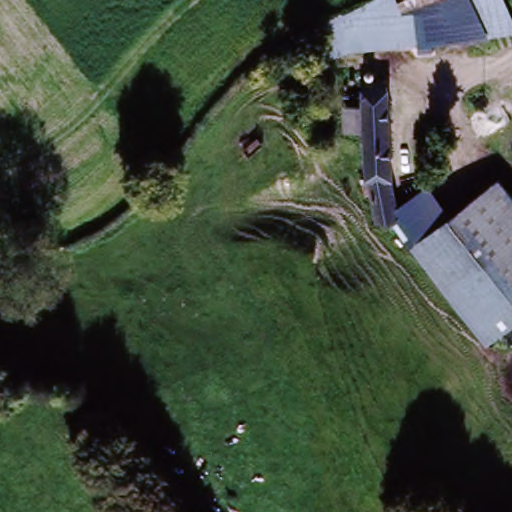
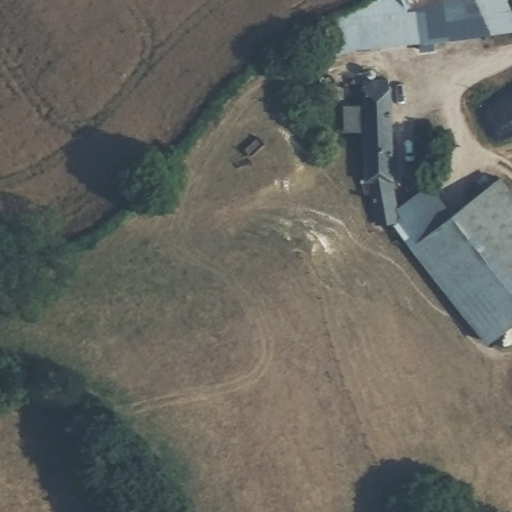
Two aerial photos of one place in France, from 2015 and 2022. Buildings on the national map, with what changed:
unchanged [(322,69),(315,29),(379,0),(507,0),(512,11),(512,30),(467,37),(452,9),(419,22),(431,47),(362,50),(322,69)]
unchanged [(385,84),(392,168),(400,225),(382,229),(376,202),(369,134),(350,135),(349,113),(367,111),(365,85),(385,84)]
unchanged [(512,194),(512,325),(485,345),(412,249),(502,181),(512,194)]

